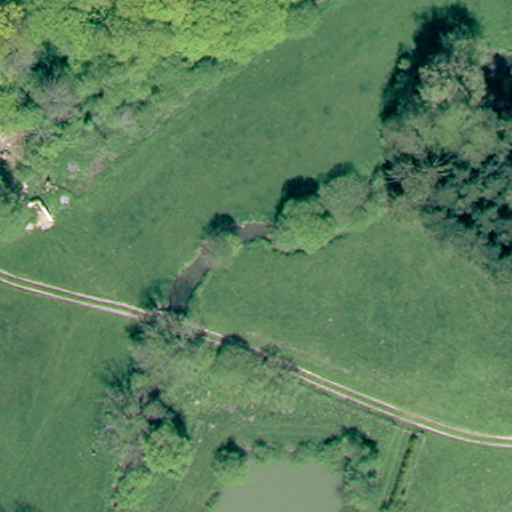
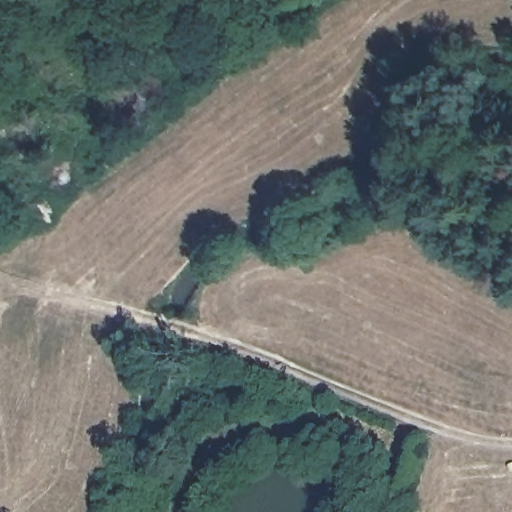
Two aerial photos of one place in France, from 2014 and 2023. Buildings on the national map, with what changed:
[]

